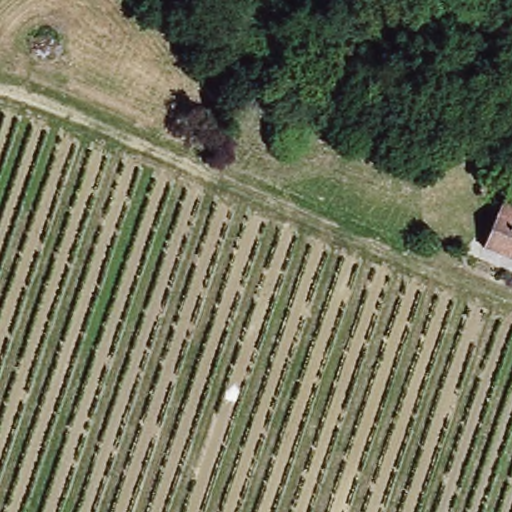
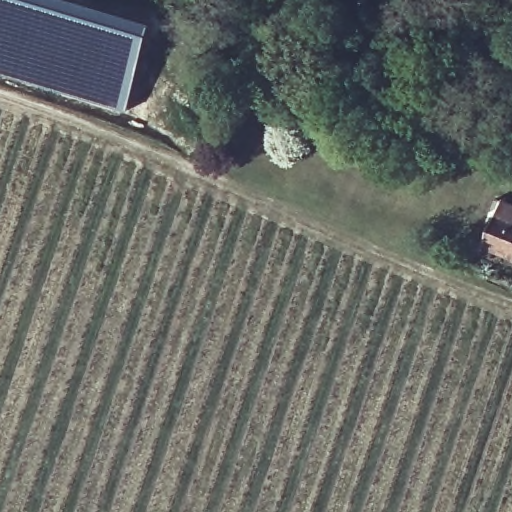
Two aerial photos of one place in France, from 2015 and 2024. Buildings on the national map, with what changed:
new [(77,0),(153,22),(124,111),(0,74),(0,0),(77,0)]
unchanged [(504,201),(512,204),(512,259),(481,248),(504,201)]

